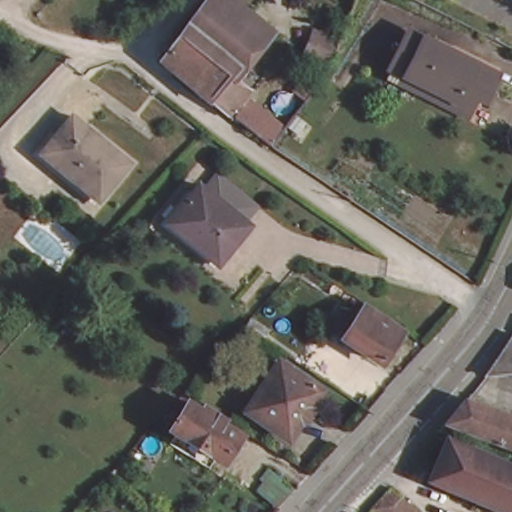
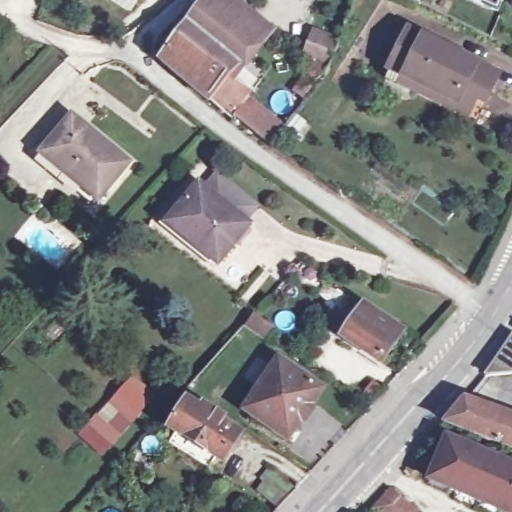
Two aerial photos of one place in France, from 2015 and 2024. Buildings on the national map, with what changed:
unchanged [(165,58),(196,16),(209,0),(234,0),(246,10),(209,57),(215,63),(196,83),(165,58)]
new [(417,3),(412,0),(419,0),(417,3)]
new [(500,13),(470,0),(505,0),(500,13)]
unchanged [(270,29),(233,76),(253,92),(250,97),(236,115),(200,86),(196,83),(215,63),(209,57),(246,10),(270,29)]
unchanged [(340,41),(325,70),(298,59),(315,28),(340,41)]
unchanged [(456,112),(417,94),(404,87),(407,80),(390,72),(410,34),(500,77),(490,99),(481,95),(473,111),(470,118),(456,112)]
unchanged [(250,97),(288,127),(276,145),(236,115),(250,97)]
unchanged [(52,146),(77,116),(135,162),(105,200),(75,175),(46,153),(52,146)]
unchanged [(250,229),(247,233),(218,269),(177,234),(168,228),(180,214),(193,197),(200,188),(250,229)]
unchanged [(372,307),(407,331),(382,367),(346,342),(372,307)]
unchanged [(277,361),(320,388),(285,437),(244,408),(277,361)]
unchanged [(503,374),(512,361),(512,374),(503,374)]
new [(90,424),(133,374),(157,395),(113,445),(90,424)]
unchanged [(188,402),(200,410),(204,405),(226,418),(222,424),(239,434),(223,459),(218,455),(178,430),(172,426),(188,402)]
unchanged [(504,449),(479,439),(455,430),(448,427),(468,403),(512,420),(512,453),(504,449)]
unchanged [(496,508),(476,497),(451,485),(430,474),(451,437),(474,447),(498,459),(512,465),(512,480),(496,508)]
unchanged [(505,512),(496,508),(512,480),(512,512),(505,512)]
unchanged [(380,512),(392,499),(416,512),(380,512)]

